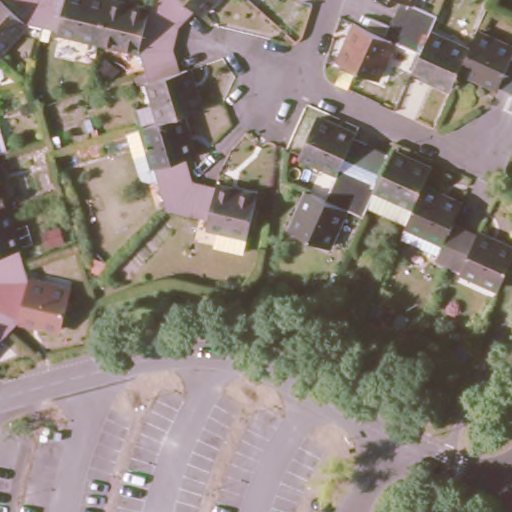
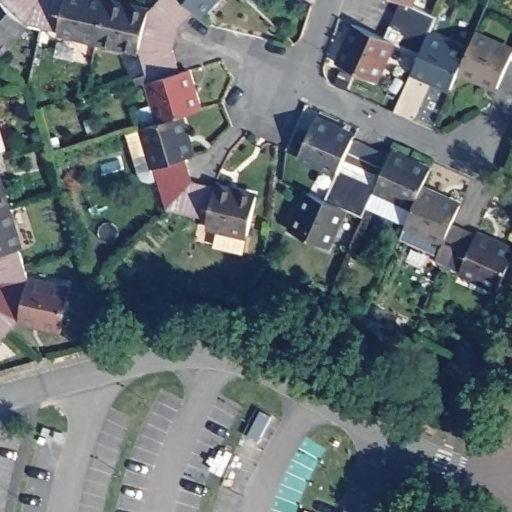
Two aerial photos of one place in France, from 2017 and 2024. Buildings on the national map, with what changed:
unchanged [(27,22),(0,50),(0,0),(38,0),(27,22)]
unchanged [(27,22),(38,0),(102,0),(107,1),(99,40),(41,25),(27,22)]
unchanged [(194,9),(179,23),(148,11),(158,0),(212,0),(200,14),(194,9)]
unchanged [(436,11),(430,24),(395,8),(398,0),(411,0),(436,11)]
unchanged [(175,47),(140,50),(99,40),(107,1),(148,11),(179,23),(175,47)]
unchanged [(395,8),(430,24),(427,31),(465,48),(457,65),(449,84),(412,67),(420,50),(425,37),(389,21),(395,8)]
unchanged [(375,74),(340,59),(357,20),(384,33),(389,21),(425,37),(420,50),(392,36),(375,74)]
unchanged [(497,84),(457,65),(465,48),(474,29),(512,46),(512,90),(509,89),(497,84)]
unchanged [(181,70),(188,68),(200,110),(182,116),(162,122),(146,71),(140,50),(175,47),(181,70)]
unchanged [(396,149),(434,165),(427,183),(418,201),(410,220),(372,203),(367,212),(354,206),(349,205),(332,241),(297,226),(315,188),(330,195),(342,167),(305,150),(320,115),(358,132),(357,135),(368,140),(380,145),(395,151),(396,149)]
unchanged [(143,128),(162,122),(182,116),(194,155),(185,158),(192,181),(168,207),(143,128)]
unchanged [(0,209),(0,181),(8,207),(0,209)]
unchanged [(248,235),(244,251),(214,244),(218,227),(208,225),(210,218),(168,207),(192,181),(216,187),(257,197),(248,235)]
unchanged [(465,200),(457,219),(470,225),(454,261),(440,256),(449,238),(410,220),(418,201),(427,183),(465,200)]
unchanged [(30,280),(0,280),(0,209),(8,207),(26,263),(30,280)]
unchanged [(505,284),(454,261),(470,225),(482,230),(512,244),(512,268),(505,284)]
unchanged [(20,320),(0,308),(0,280),(30,280),(71,290),(62,328),(20,320)]
unchanged [(0,341),(0,308),(20,320),(10,330),(0,341)]

